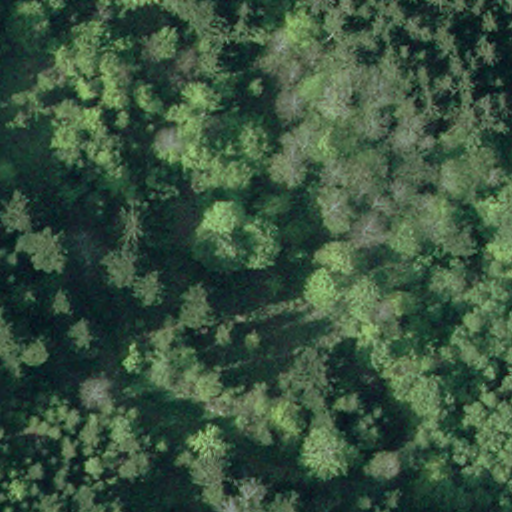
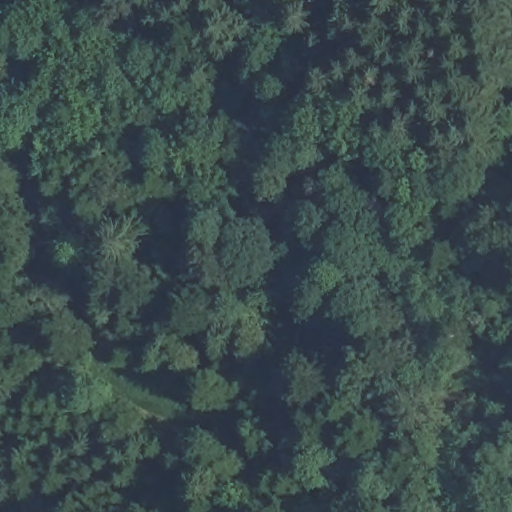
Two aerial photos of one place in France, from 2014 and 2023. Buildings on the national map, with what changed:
unchanged [(226,4),(261,69),(222,80),(187,19),(226,4)]

